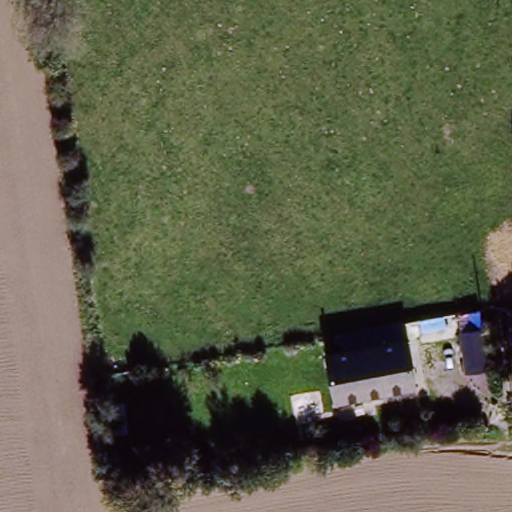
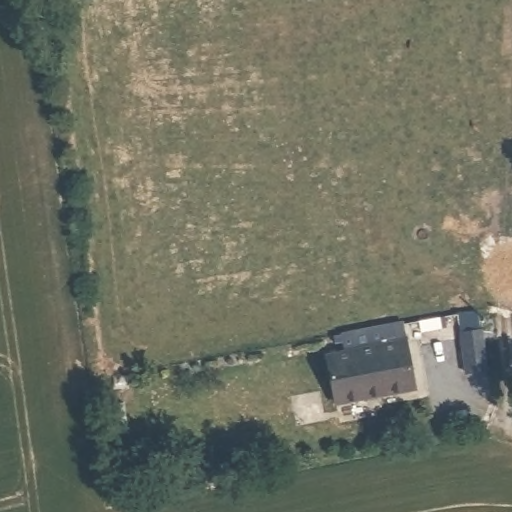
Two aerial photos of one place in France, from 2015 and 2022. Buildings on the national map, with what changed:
unchanged [(337,407),(325,357),(408,342),(417,391),(337,407)]

